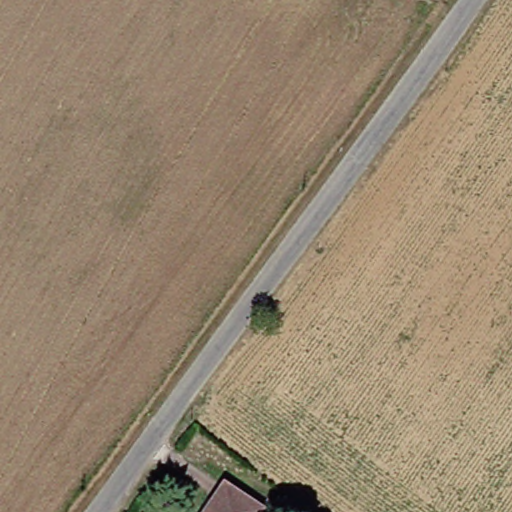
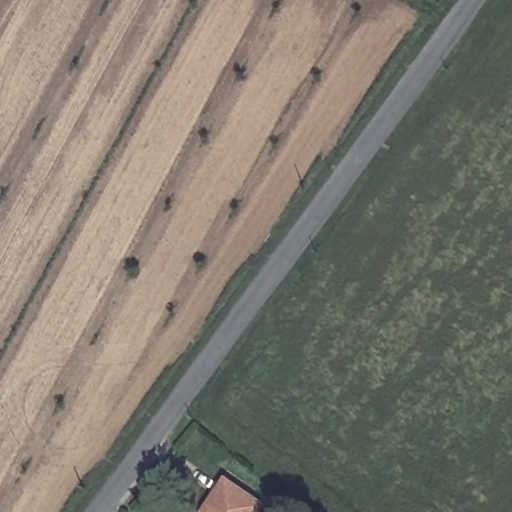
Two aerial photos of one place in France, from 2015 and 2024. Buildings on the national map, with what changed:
unchanged [(235,482),(272,506),(267,512),(215,512),(235,482)]

